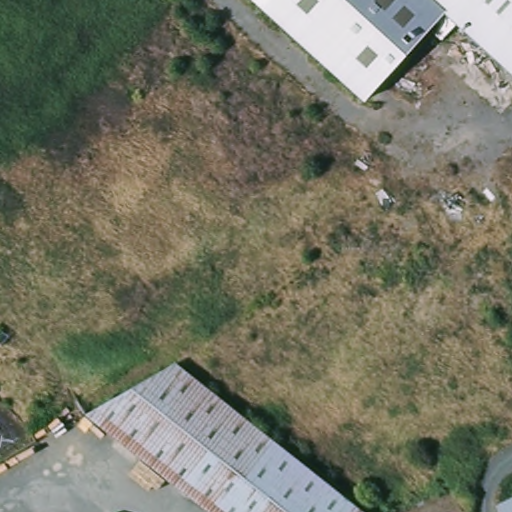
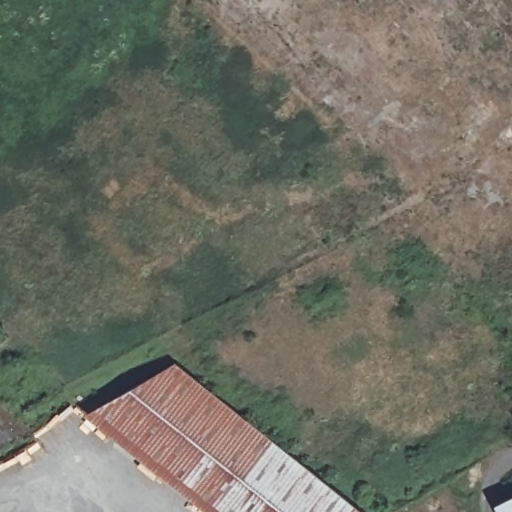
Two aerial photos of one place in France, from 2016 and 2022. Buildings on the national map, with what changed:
demolished [(266,0),(260,7),(252,0),(266,0)]
demolished [(437,0),(447,10),(363,101),(260,7),(266,0),(437,0)]
demolished [(447,10),(437,0),(512,0),(512,68),(447,10)]
unchanged [(76,414),(165,363),(229,410),(371,512),(209,512),(192,500),(76,414)]
unchanged [(485,511),(512,498),(512,512),(485,512),(485,511)]

